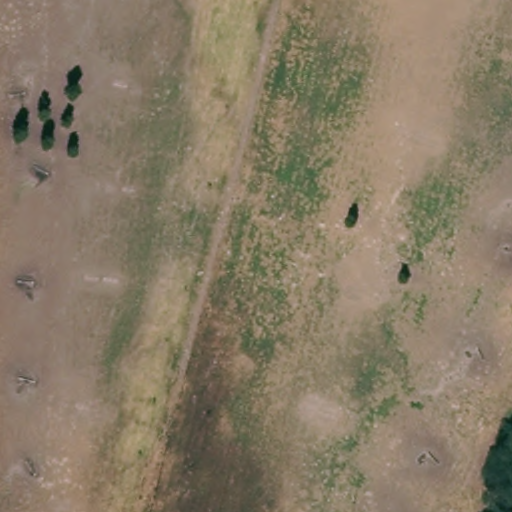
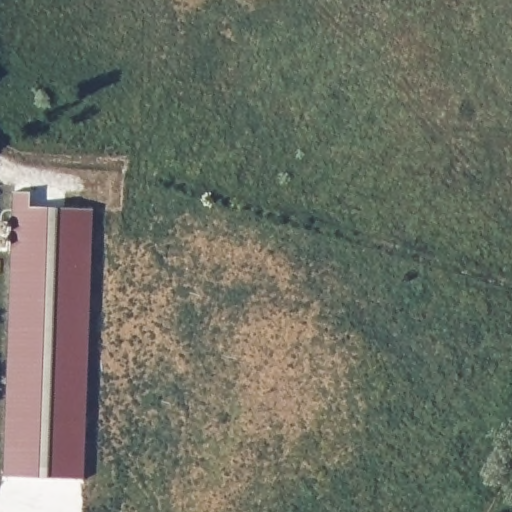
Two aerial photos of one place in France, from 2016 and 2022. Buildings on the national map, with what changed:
new [(15,205),(74,209),(50,483),(0,478),(0,182),(16,184),(15,205)]

